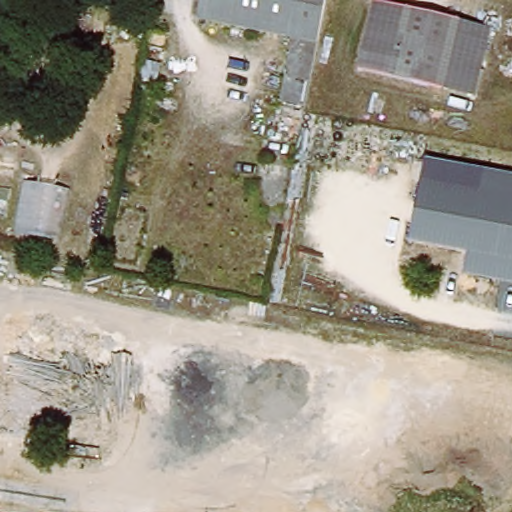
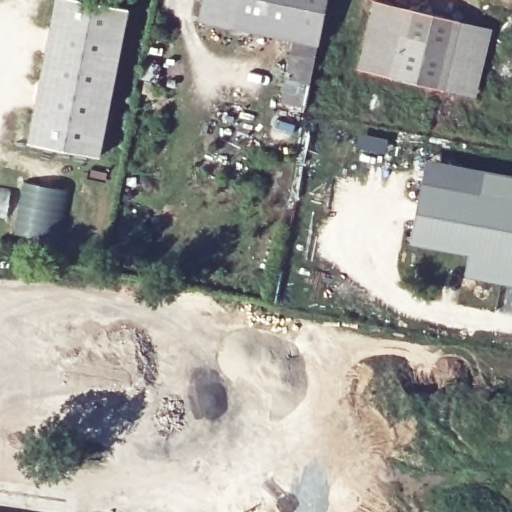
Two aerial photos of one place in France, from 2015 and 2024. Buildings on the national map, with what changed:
new [(99,157),(27,143),(54,0),(84,0),(128,9),(99,157)]
unchanged [(199,22),(204,0),(327,0),(319,45),(199,22)]
unchanged [(448,91),(363,73),(376,3),(461,20),(448,91)]
unchanged [(494,27),(479,97),(448,91),(461,20),(494,27)]
unchanged [(306,107),(279,102),(292,40),(319,45),(306,107)]
demolished [(15,179),(0,176),(0,150),(19,154),(15,179)]
unchanged [(469,254),(411,242),(423,181),(481,190),(486,172),(512,176),(512,284),(465,274),(469,254)]
unchanged [(16,234),(24,182),(70,190),(61,242),(16,234)]
unchanged [(7,216),(0,215),(0,191),(10,192),(7,216)]

